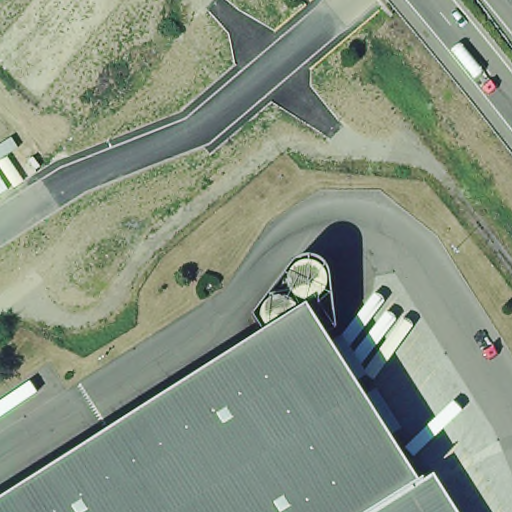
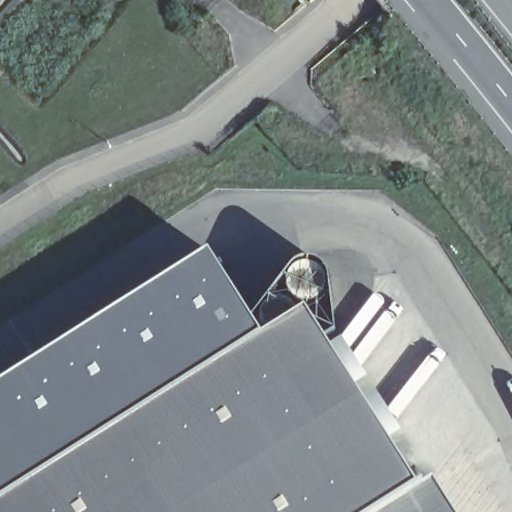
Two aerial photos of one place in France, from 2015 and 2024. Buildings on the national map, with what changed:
new [(261,334),(0,499),(0,383),(208,251),(261,334)]
unchanged [(264,331),(251,311),(291,261),(294,258),(301,255),(306,253),(314,252),(322,252),(329,253),(335,256),(338,260),(341,265),(341,270),(341,324),(329,332),(422,479),(426,476),(427,477),(416,484),(417,485),(413,488),(428,512),(0,512),(0,499),(264,331)]

